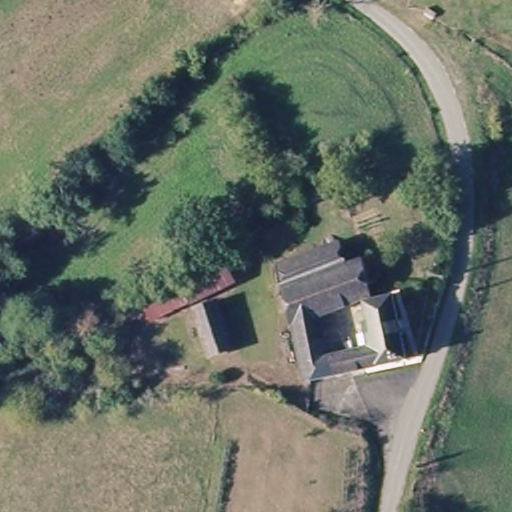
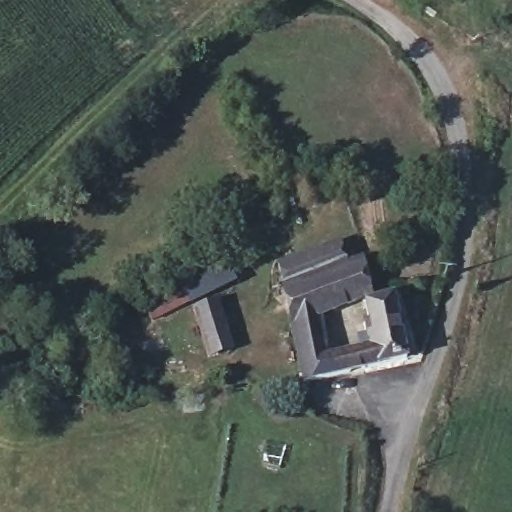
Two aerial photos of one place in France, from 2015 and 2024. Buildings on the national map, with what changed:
unchanged [(341,247),(347,262),(359,259),(370,295),(315,315),(324,352),(376,341),(369,303),(397,299),(407,358),(300,382),(277,267),(341,247)]
unchanged [(222,256),(236,282),(191,306),(178,278),(222,256)]
unchanged [(217,301),(234,347),(208,357),(193,309),(217,301)]

